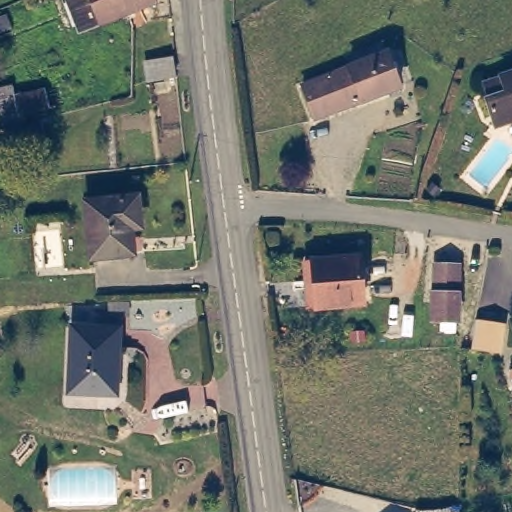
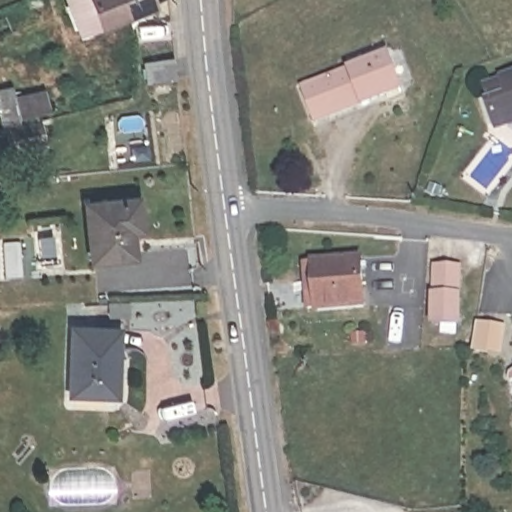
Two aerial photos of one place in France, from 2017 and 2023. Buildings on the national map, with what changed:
unchanged [(92,27),(90,22),(76,26),(68,0),(113,0),(118,19),(92,27)]
unchanged [(147,10),(118,19),(113,0),(156,0),(146,4),(147,10)]
unchanged [(390,54),(401,88),(317,119),(305,85),(390,54)]
unchanged [(170,56),(173,75),(146,81),(142,61),(170,56)]
unchanged [(512,116),(495,122),(487,102),(508,94),(502,80),(512,76),(512,116)]
unchanged [(45,90),(46,112),(0,119),(0,98),(45,90)]
unchanged [(138,199),(140,228),(132,229),(133,254),(97,257),(91,202),(138,199)]
unchanged [(307,258),(320,257),(320,256),(363,254),(366,297),(323,300),(311,301),(307,258)]
unchanged [(455,262),(464,319),(443,321),(435,265),(455,262)]
unchanged [(485,317),(500,318),(497,347),(481,345),(485,317)]
unchanged [(73,392),(73,388),(70,327),(117,325),(118,346),(112,346),(115,393),(73,392)]
unchanged [(512,386),(509,381),(505,377),(512,372),(512,386)]

